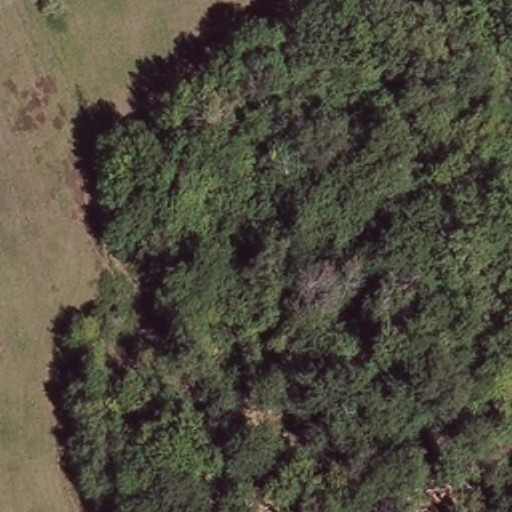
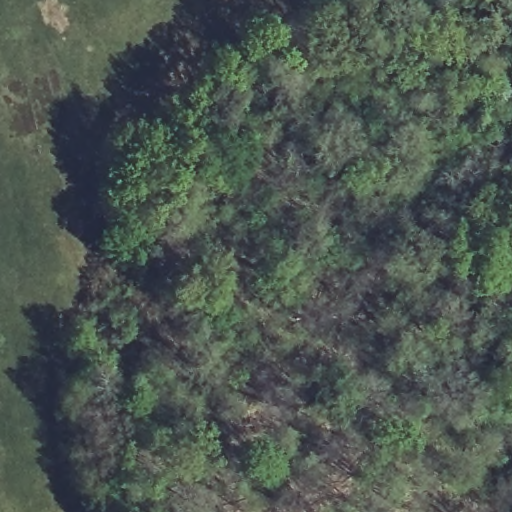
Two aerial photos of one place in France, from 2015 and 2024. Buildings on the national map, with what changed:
[]

